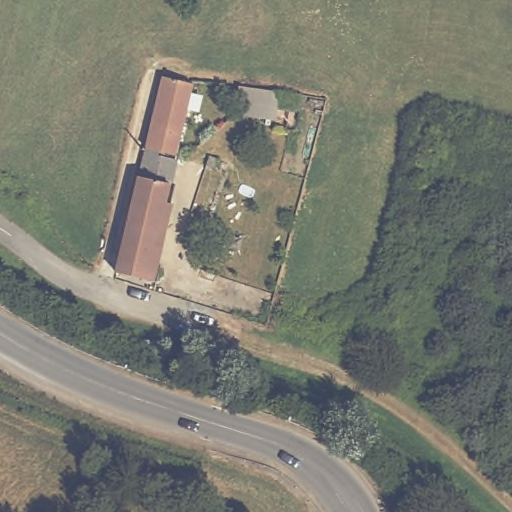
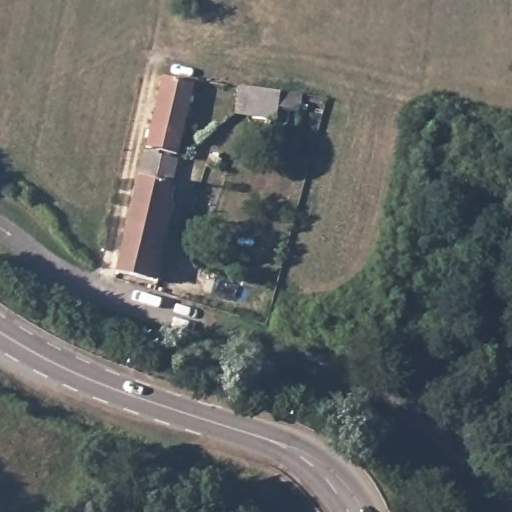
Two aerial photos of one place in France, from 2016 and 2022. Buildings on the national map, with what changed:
unchanged [(169,209),(152,283),(116,274),(161,79),(191,86),(169,186),(174,187),(169,209)]
unchanged [(274,108),(272,118),(230,112),(234,86),(260,88),(260,91),(297,95),(295,111),(274,108)]
unchanged [(218,171),(206,166),(209,157),(221,161),(218,171)]

